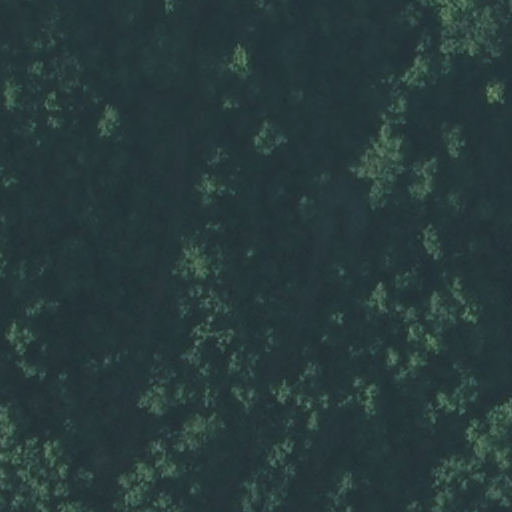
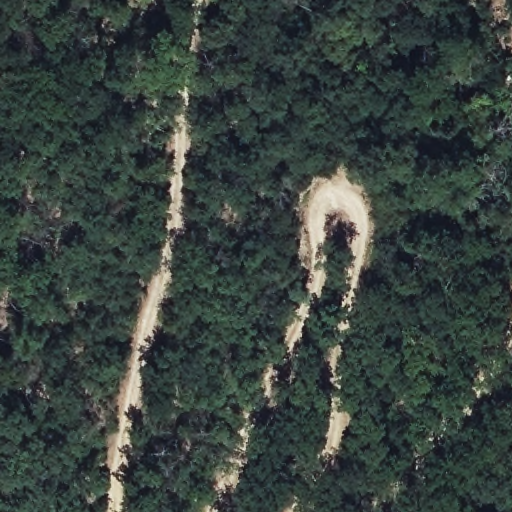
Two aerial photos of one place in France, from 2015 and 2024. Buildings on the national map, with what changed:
[]

